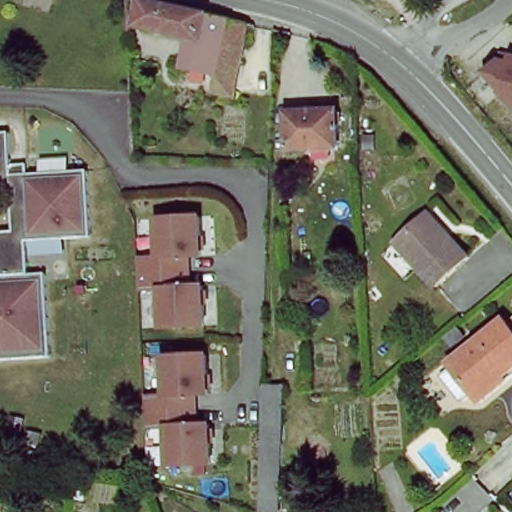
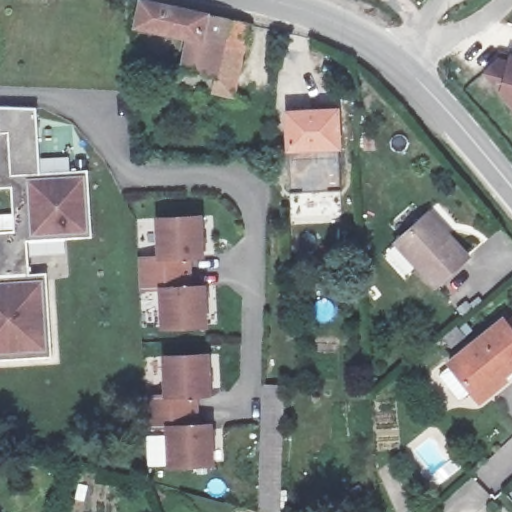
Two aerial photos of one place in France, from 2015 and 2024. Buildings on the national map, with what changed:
unchanged [(216,77),(180,68),(185,43),(136,28),(141,0),(147,0),(211,16),(229,20),(216,77)]
unchanged [(250,25),(238,82),(216,77),(229,20),(250,25)]
unchanged [(500,65),(502,58),(512,60),(512,106),(486,77),(500,65)]
unchanged [(216,77),(238,82),(233,102),(173,92),(180,68),(216,77)]
new [(40,179),(12,180),(10,137),(0,138),(0,129),(0,111),(36,113),(40,179)]
unchanged [(284,146),(287,111),(339,114),(338,148),(284,146)]
unchanged [(0,138),(10,137),(12,180),(40,179),(88,175),(92,242),(27,246),(30,279),(47,278),(52,362),(0,364),(0,138)]
unchanged [(470,257),(426,295),(386,247),(431,209),(470,257)]
unchanged [(163,260),(161,224),(203,222),(205,258),(192,259),(194,290),(206,289),(208,326),(166,327),(165,291),(143,292),(142,261),(163,260)]
unchanged [(512,364),(505,370),(510,378),(481,403),(450,360),(504,312),(512,321),(512,364)]
unchanged [(210,361),(211,397),(198,397),(200,428),(212,428),(214,465),(172,466),(171,430),(150,431),(148,407),(148,400),(169,399),(167,362),(210,361)]
unchanged [(263,385),(285,382),(281,500),(260,501),(263,385)]

